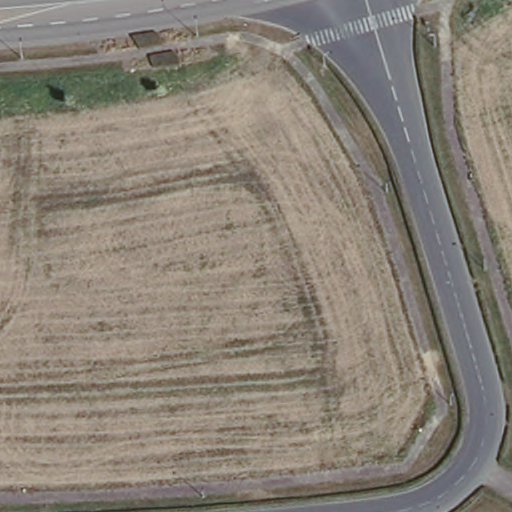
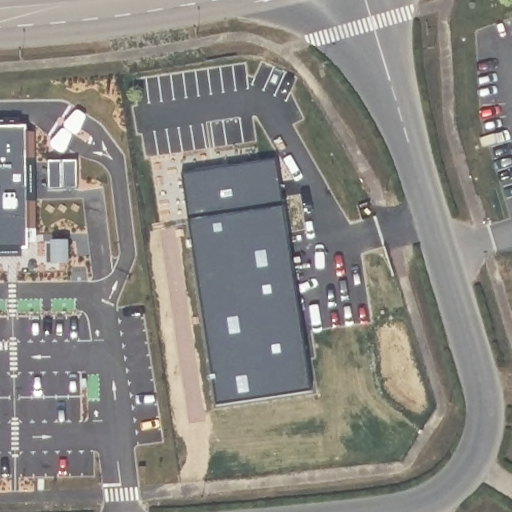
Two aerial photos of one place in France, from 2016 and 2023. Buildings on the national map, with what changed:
new [(34,126),(35,163),(76,160),(77,190),(38,193),(37,229),(27,230),(28,248),(21,249),(22,258),(0,258),(0,127),(34,126)]
new [(279,152),(315,392),(215,410),(181,166),(279,152)]

